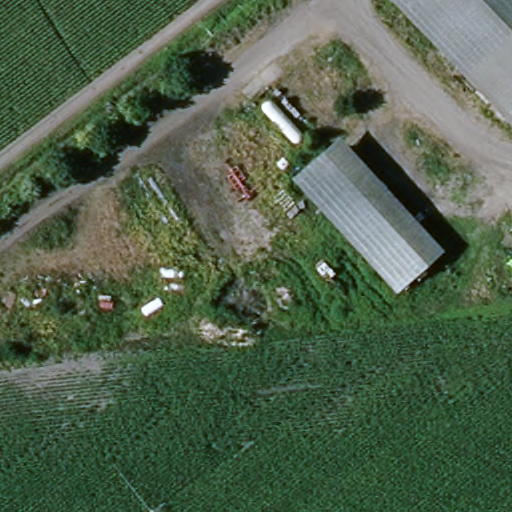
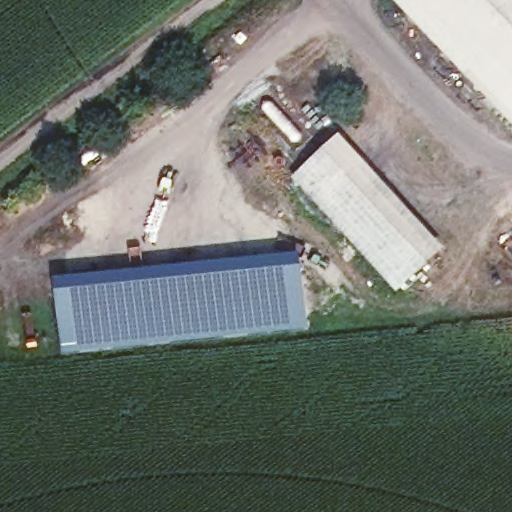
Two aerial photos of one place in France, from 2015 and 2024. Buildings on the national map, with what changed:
unchanged [(422,0),(512,0),(512,98),(422,0)]
unchanged [(442,255),(401,292),(302,176),(340,140),(442,255)]
new [(57,280),(303,256),(310,331),(64,357),(57,280)]

